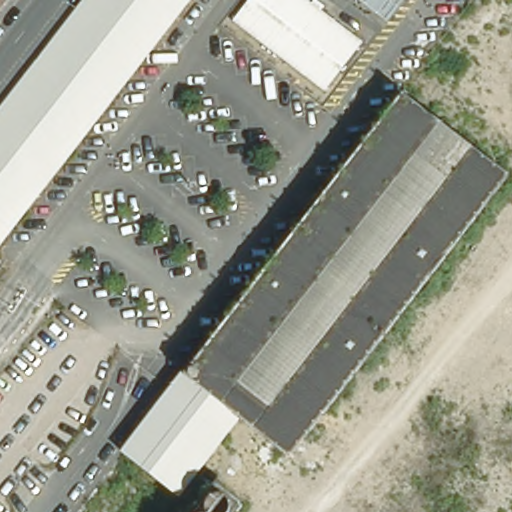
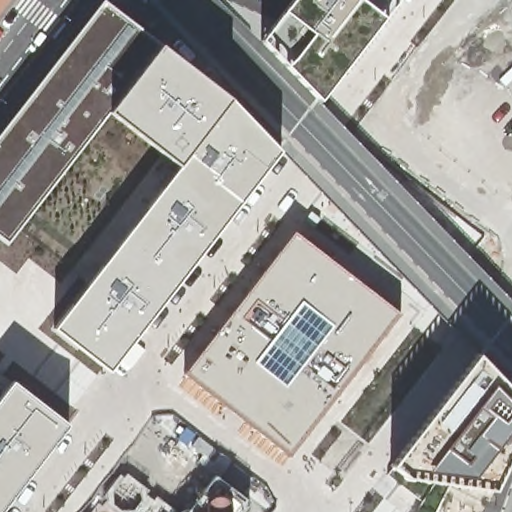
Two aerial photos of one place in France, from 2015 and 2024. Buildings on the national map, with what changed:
unchanged [(0,5),(0,0),(4,0),(0,5)]
demolished [(183,0),(0,237),(0,106),(83,0),(183,0)]
demolished [(313,0),(361,37),(323,86),(233,17),(246,0),(313,0)]
new [(398,0),(320,99),(267,39),(297,0),(398,0)]
demolished [(358,0),(404,0),(387,22),(358,0)]
new [(226,97),(281,149),(111,368),(55,325),(179,166),(108,110),(7,240),(0,235),(0,137),(104,2),(226,97)]
demolished [(236,415),(203,460),(171,499),(115,460),(184,373),(401,91),(512,175),(512,177),(298,461),(236,415)]
new [(289,457),(184,375),(295,232),(401,315),(289,457)]
new [(470,352),(512,396),(512,432),(487,485),(397,475),(382,464),(470,352)]
new [(66,425),(0,510),(0,401),(13,383),(66,425)]

